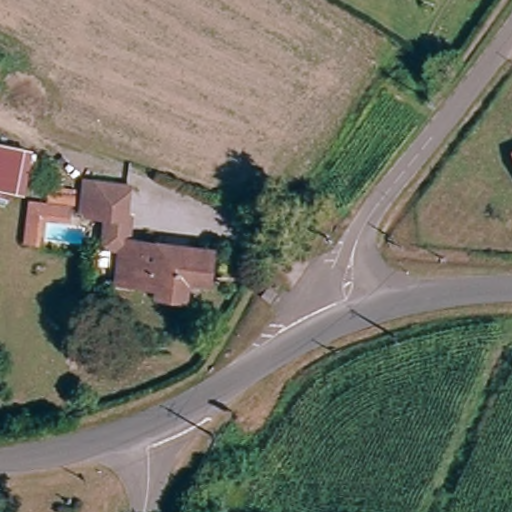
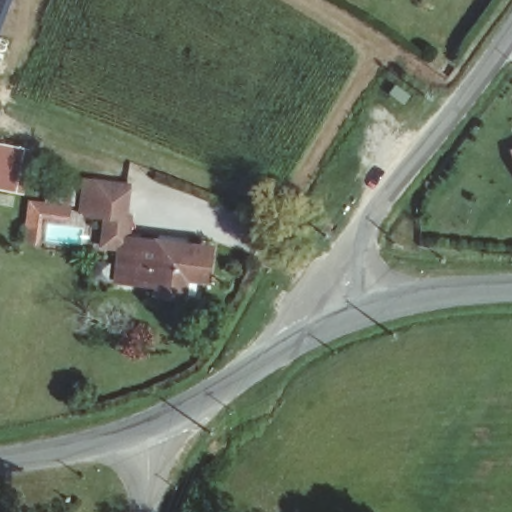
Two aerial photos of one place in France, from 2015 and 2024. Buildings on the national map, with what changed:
new [(13,0),(0,30),(0,0),(13,0)]
unchanged [(29,147),(25,190),(0,187),(0,143),(29,147)]
unchanged [(103,249),(103,217),(95,217),(79,215),(84,185),(97,186),(122,188),(120,220),(119,250),(103,249)]
unchanged [(187,245),(212,246),(210,283),(186,281),(184,295),(160,294),(160,285),(142,284),(121,283),(124,240),(141,241),(169,244),(187,245)]

